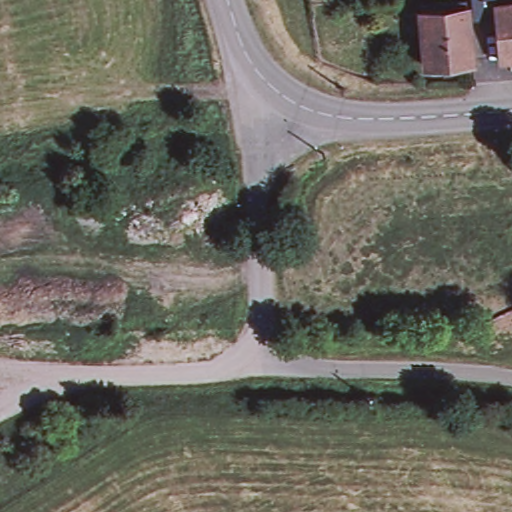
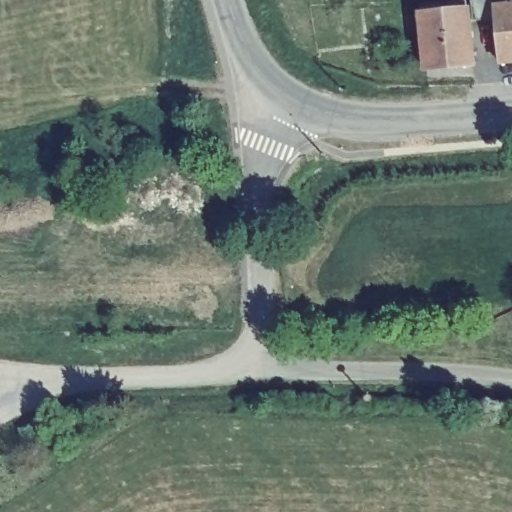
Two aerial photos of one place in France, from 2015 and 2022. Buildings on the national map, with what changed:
unchanged [(499,65),(494,22),(470,24),(468,0),(492,0),(494,14),(512,13),(512,64),(499,65)]
unchanged [(423,71),(418,17),(417,11),(417,7),(464,3),(466,13),(471,67),(423,71)]

